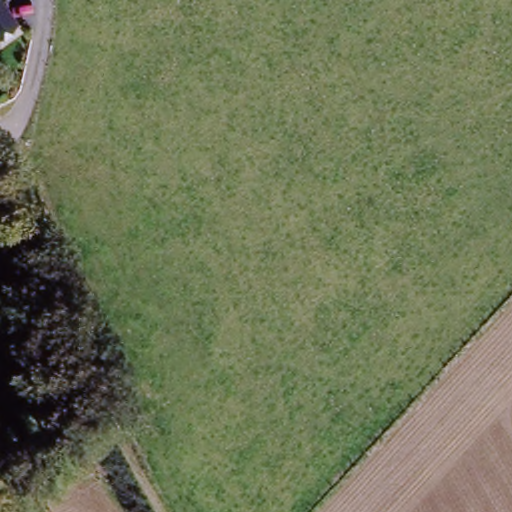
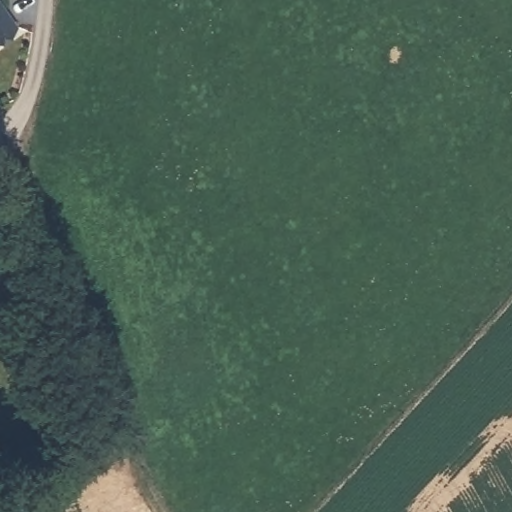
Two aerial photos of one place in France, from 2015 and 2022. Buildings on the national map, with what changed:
unchanged [(20,27),(0,42),(0,0),(20,27)]

